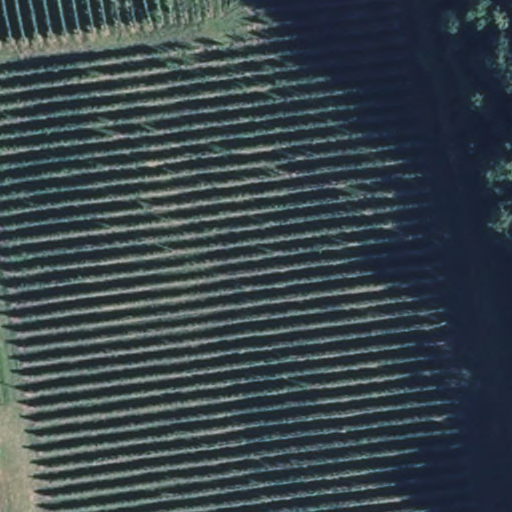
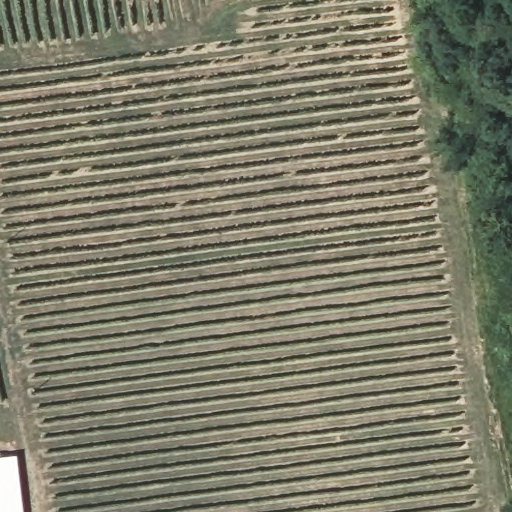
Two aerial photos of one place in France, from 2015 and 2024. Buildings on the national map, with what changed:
new [(14,460),(21,512),(0,512),(0,463),(14,460)]

